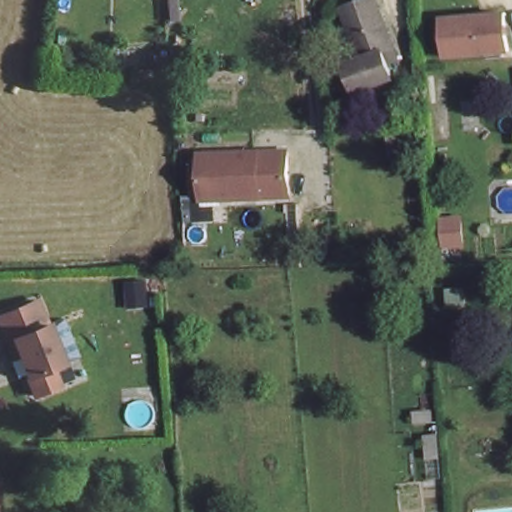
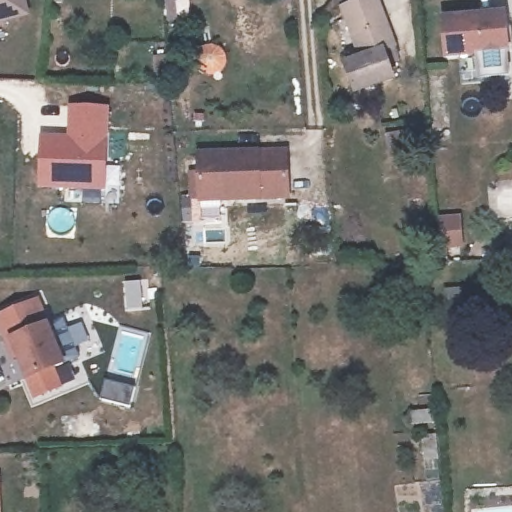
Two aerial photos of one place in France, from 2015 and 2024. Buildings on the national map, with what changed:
new [(25,0),(30,16),(0,23),(0,0),(25,0)]
unchanged [(385,57),(394,80),(358,95),(346,69),(360,62),(339,10),(365,0),(374,0),(394,54),(385,57)]
unchanged [(512,48),(455,58),(446,20),(510,10),(512,17),(512,48)]
new [(37,187),(41,135),(67,136),(70,106),(109,107),(105,190),(37,187)]
unchanged [(289,147),(289,193),(201,193),(200,147),(289,147)]
unchanged [(56,363),(45,370),(56,385),(38,397),(37,398),(5,341),(0,343),(0,314),(23,302),(35,325),(56,363)]

